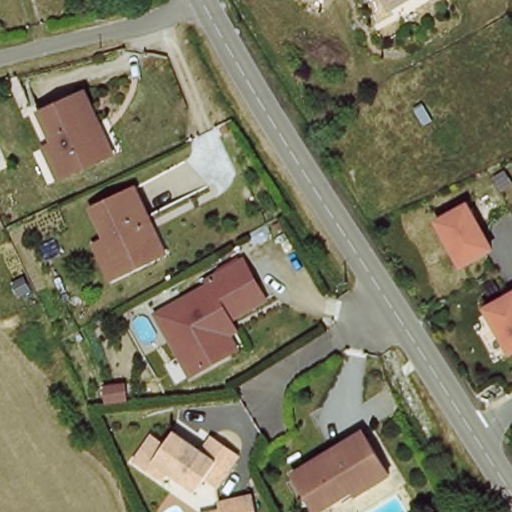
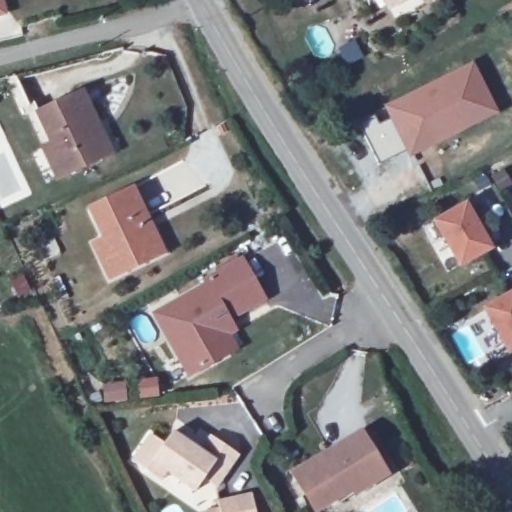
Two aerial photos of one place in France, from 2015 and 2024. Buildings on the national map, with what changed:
new [(7,15),(0,17),(0,0),(3,0),(7,15)]
unchanged [(382,0),(412,0),(398,6),(387,11),(382,0)]
unchanged [(433,0),(445,0),(435,5),(433,0)]
new [(472,60),(500,112),(437,145),(407,159),(405,152),(387,117),(382,105),(472,60)]
unchanged [(41,146),(52,140),(37,110),(82,87),(98,116),(115,149),(101,156),(69,174),(58,180),(41,146)]
new [(375,113),(379,121),(387,117),(405,152),(380,163),(360,122),(375,113)]
new [(488,176),(505,167),(512,181),(512,184),(498,192),(492,184),(474,192),(467,180),(485,171),(488,176)]
unchanged [(99,250),(110,245),(93,215),(134,190),(153,223),(170,253),(164,257),(130,277),(118,283),(99,250)]
unchanged [(435,219),(471,200),(495,250),(461,269),(435,219)]
unchanged [(226,358),(192,378),(157,318),(209,288),(206,283),(242,262),(265,301),(230,322),(245,347),(226,358)]
unchanged [(512,294),(512,355),(510,356),(484,308),(512,294)]
unchanged [(155,475),(137,462),(156,436),(172,447),(180,435),(205,451),(215,437),(243,457),(232,471),(223,483),(215,477),(200,498),(171,478),(167,484),(155,475)]
unchanged [(366,436),(389,482),(330,512),(317,512),(296,471),(366,436)]
unchanged [(251,497),(255,512),(219,512),(217,505),(251,497)]

